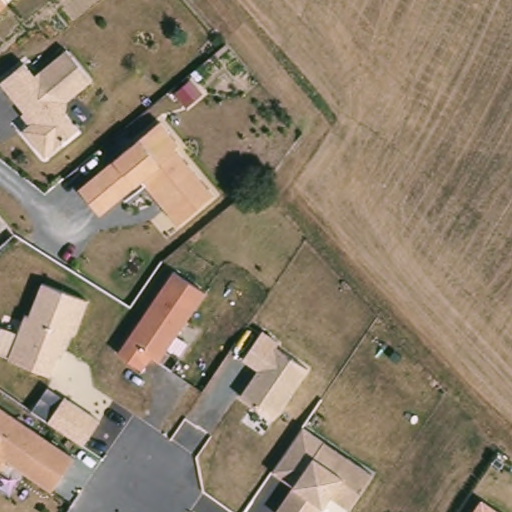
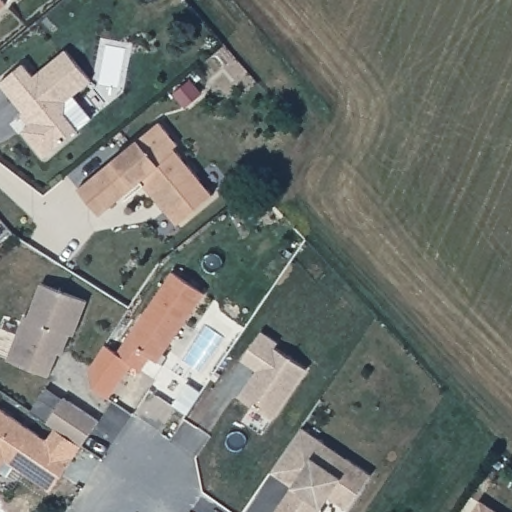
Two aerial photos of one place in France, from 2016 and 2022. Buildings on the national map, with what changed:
unchanged [(0,8),(0,0),(6,0),(8,1),(0,8)]
unchanged [(30,121),(0,86),(0,84),(25,61),(35,73),(66,47),(92,82),(66,101),(66,113),(80,129),(46,157),(24,128),(30,121)]
unchanged [(140,180),(99,214),(79,188),(113,159),(137,138),(160,120),(179,142),(174,146),(214,194),(178,225),(140,180)]
unchanged [(174,270),(207,292),(160,364),(151,357),(143,369),(118,350),(174,270)]
unchanged [(40,281),(89,300),(75,337),(71,336),(65,354),(61,353),(53,374),(9,359),(40,281)]
unchanged [(274,416),(242,396),(259,369),(243,358),(263,328),(279,340),(276,344),(308,367),(274,416)]
unchanged [(47,421),(64,394),(99,419),(83,444),(47,421)]
unchanged [(5,459),(0,468),(0,407),(74,456),(51,490),(5,459)]
unchanged [(347,508),(331,496),(321,512),(275,512),(294,485),(273,469),(303,427),(372,473),(347,508)]
unchanged [(502,512),(472,512),(481,498),(502,512)]

